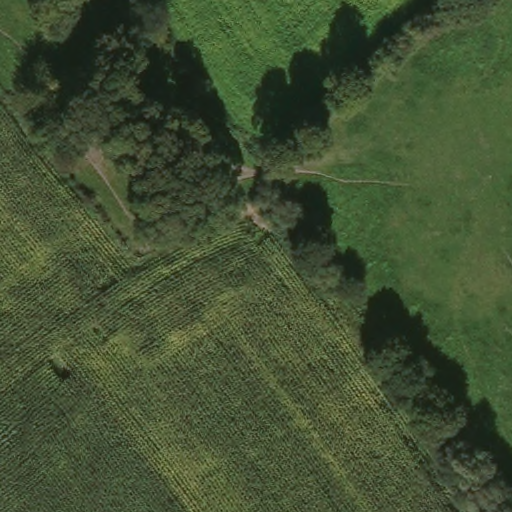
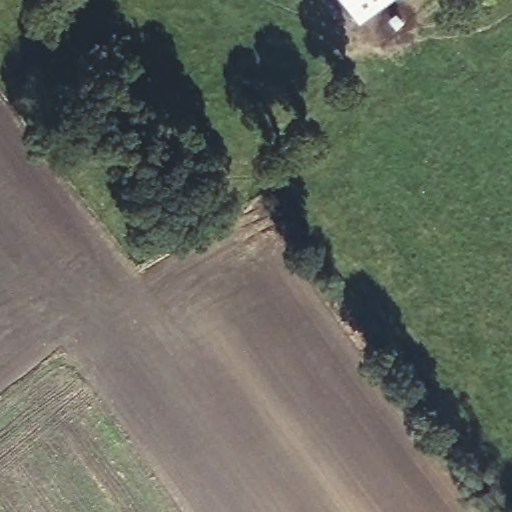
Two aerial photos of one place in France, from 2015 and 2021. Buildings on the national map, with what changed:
new [(363,26),(343,0),(395,0),(363,26)]

